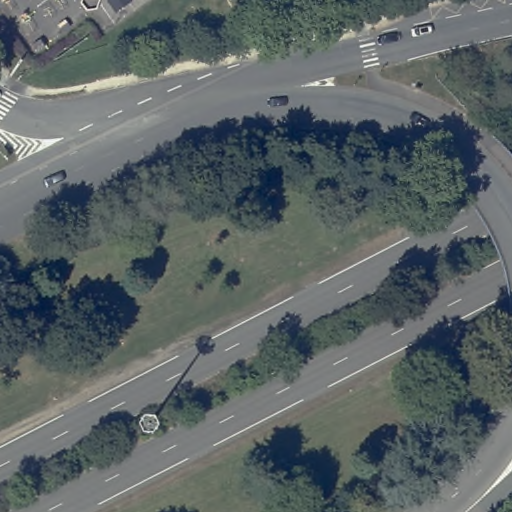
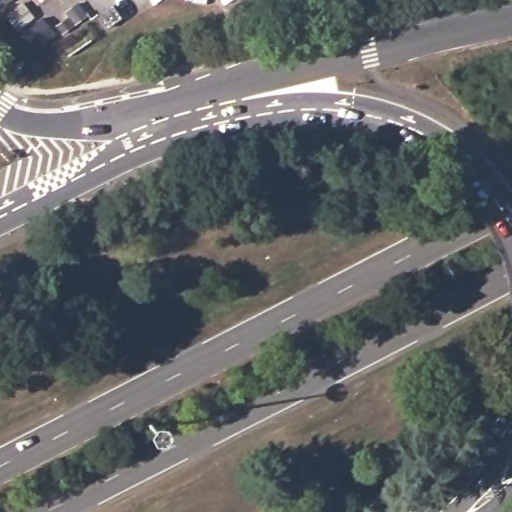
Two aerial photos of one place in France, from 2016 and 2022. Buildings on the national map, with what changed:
[]

